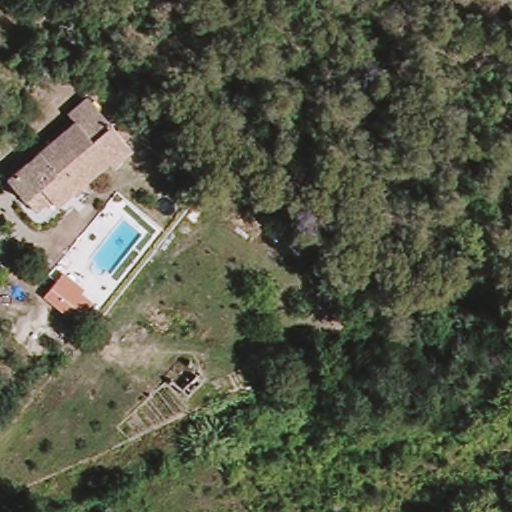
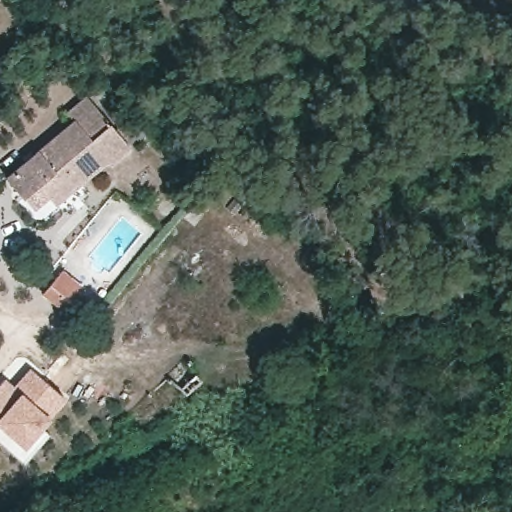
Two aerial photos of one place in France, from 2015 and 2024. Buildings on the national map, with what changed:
unchanged [(20,203),(3,182),(69,127),(63,119),(83,102),(126,154),(106,171),(103,167),(52,209),(46,203),(31,216),(20,203)]
new [(79,317),(65,306),(62,310),(43,295),(62,271),(81,286),(78,290),(92,301),(79,317)]
new [(4,377),(12,384),(29,367),(67,400),(50,417),(24,448),(0,427),(0,382),(4,377)]

